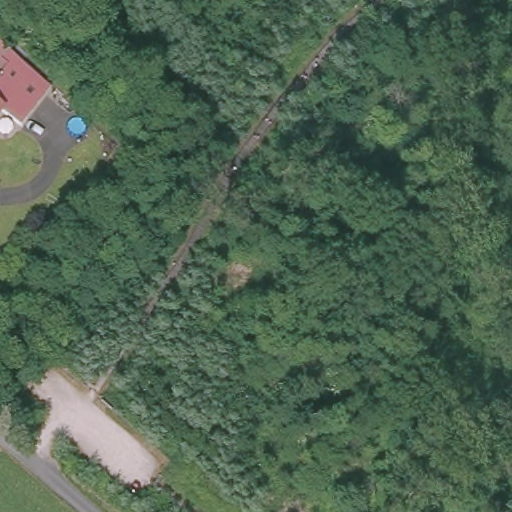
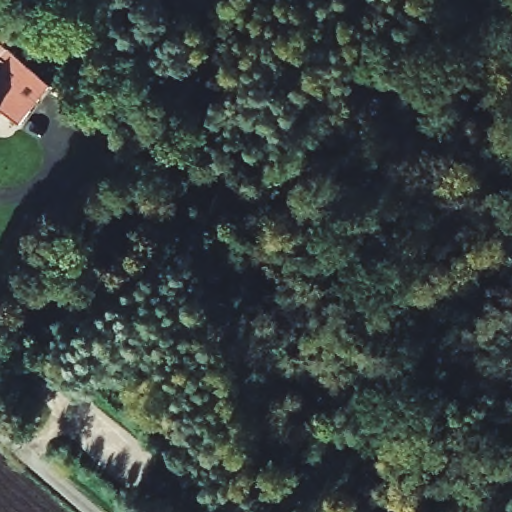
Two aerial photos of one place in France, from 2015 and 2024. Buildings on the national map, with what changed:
unchanged [(0,63),(0,45),(38,78),(30,88),(17,78),(5,93),(3,95),(0,92),(0,67),(2,65),(0,63)]
unchanged [(5,93),(19,104),(7,120),(0,115),(0,92),(3,95),(5,93)]

